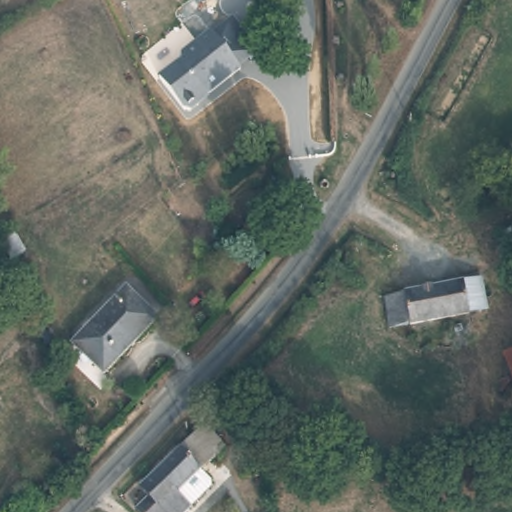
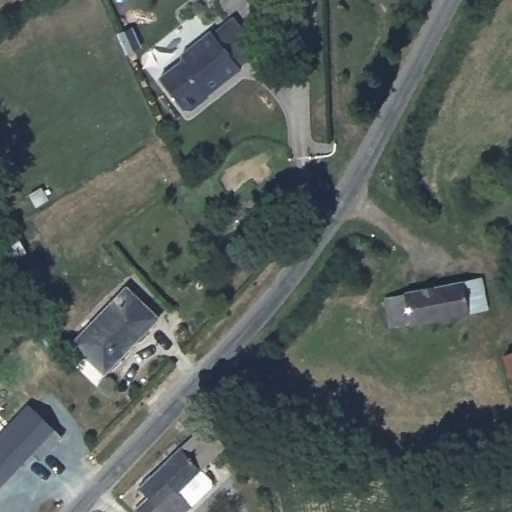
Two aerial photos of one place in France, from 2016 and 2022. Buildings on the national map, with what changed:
unchanged [(180,64),(180,56),(211,33),(240,69),(206,96),(204,94),(199,99),(197,105),(189,112),(183,111),(159,80),(180,64)]
unchanged [(30,253),(12,263),(0,243),(0,240),(17,229),(30,253)]
unchanged [(482,280),(489,309),(397,328),(391,329),(385,300),(391,299),(482,280)]
unchanged [(124,286),(153,318),(101,370),(69,338),(124,286)]
unchanged [(512,366),(505,348),(512,345),(512,366)]
new [(26,402),(62,435),(39,460),(33,455),(23,466),(21,464),(0,486),(0,431),(26,402)]
unchanged [(204,423),(228,443),(205,468),(214,475),(212,481),(191,504),(182,494),(159,472),(204,423)]
unchanged [(191,504),(184,512),(145,512),(139,505),(148,495),(142,490),(159,472),(182,494),(191,504)]

